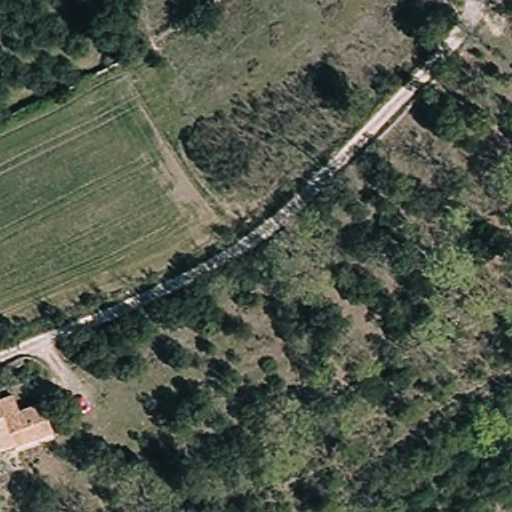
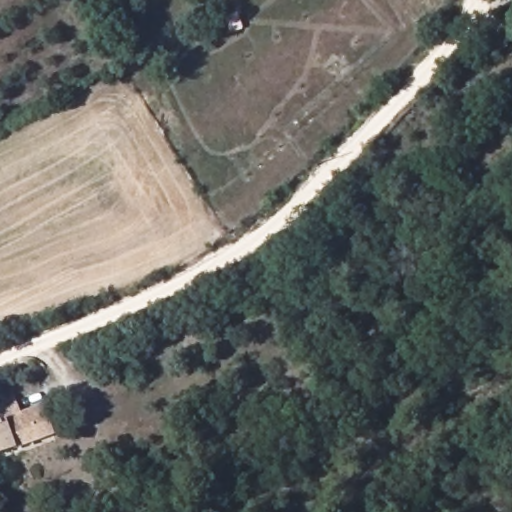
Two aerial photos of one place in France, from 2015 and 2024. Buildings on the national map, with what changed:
unchanged [(14,450),(0,454),(0,400),(12,396),(17,411),(41,405),(50,441),(14,450)]

